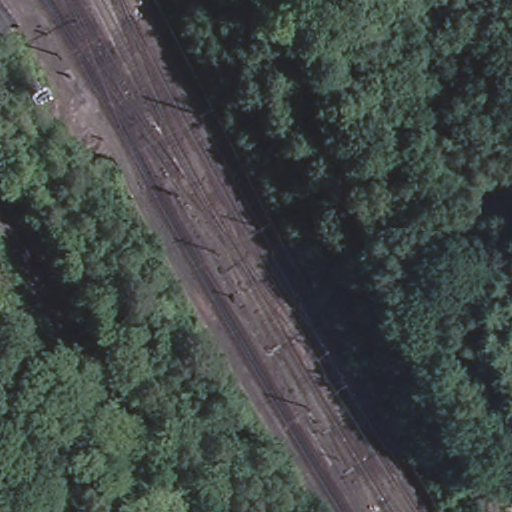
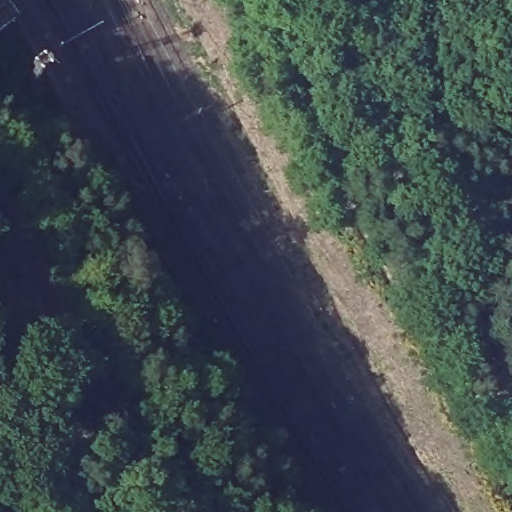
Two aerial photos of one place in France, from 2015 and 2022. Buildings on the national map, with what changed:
unchanged [(0,21),(0,1),(10,14),(5,18),(0,21)]
unchanged [(82,164),(59,127),(75,117),(98,154),(82,164)]

